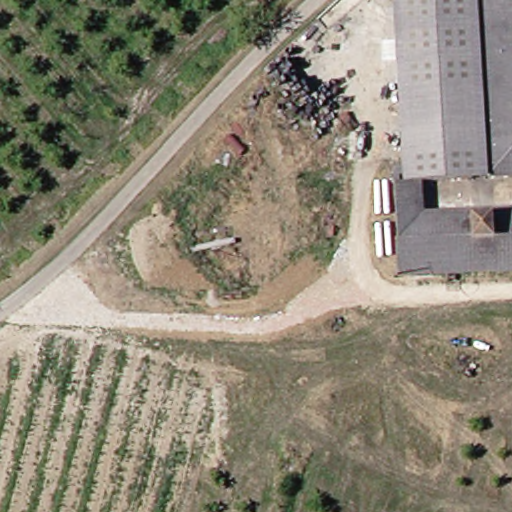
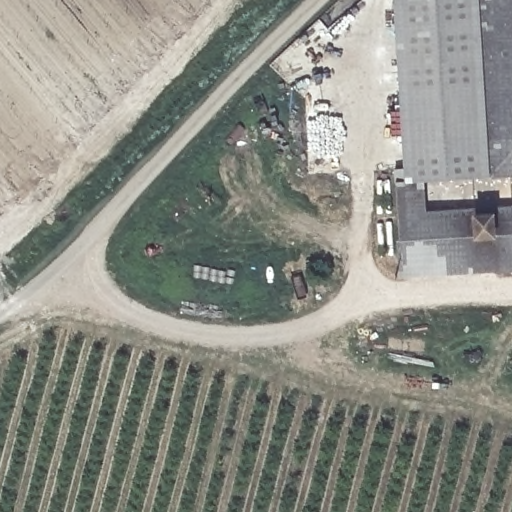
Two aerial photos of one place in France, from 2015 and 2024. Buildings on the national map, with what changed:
unchanged [(408,178),(397,0),(512,0),(512,172),(425,177),(408,178)]
unchanged [(512,210),(512,267),(406,275),(398,179),(408,178),(425,177),(427,215),(512,210)]

